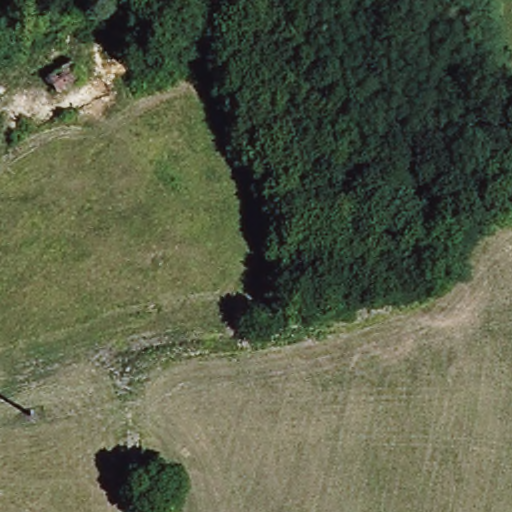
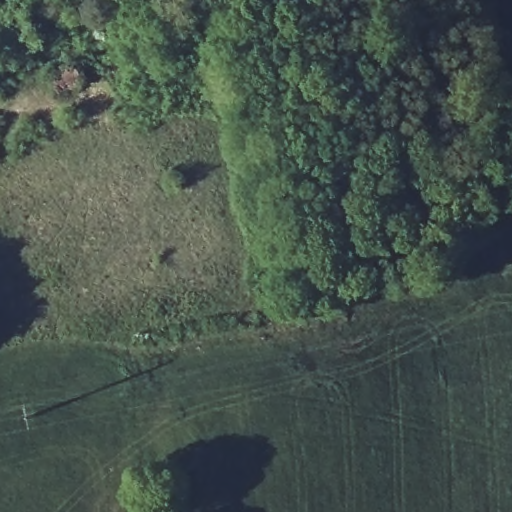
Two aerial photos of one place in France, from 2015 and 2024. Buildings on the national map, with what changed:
unchanged [(78,78),(53,90),(42,73),(68,61),(78,78)]

